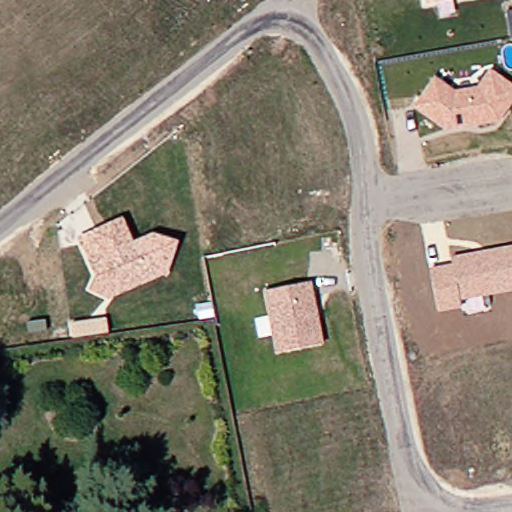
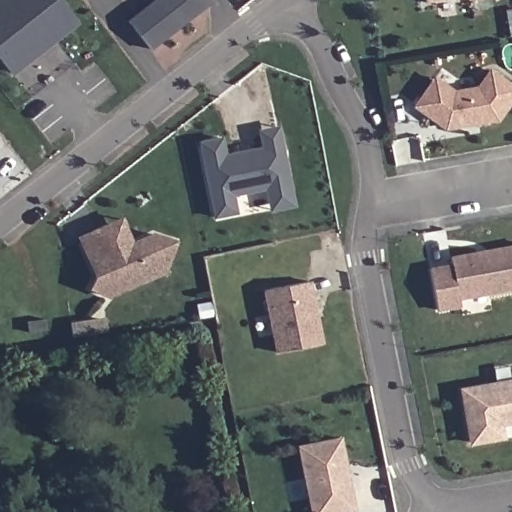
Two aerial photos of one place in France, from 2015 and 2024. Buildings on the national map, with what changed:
new [(13,72),(0,56),(0,2),(3,0),(57,0),(75,23),(54,40),(28,61),(13,72)]
new [(157,0),(207,0),(209,3),(150,50),(128,22),(157,0)]
unchanged [(426,0),(451,0),(427,5),(426,0)]
new [(512,12),(512,31),(509,12),(512,12)]
unchanged [(456,92),(478,87),(489,70),(512,85),(512,104),(499,122),(446,131),(413,107),(434,76),(456,92)]
new [(272,211),(268,190),(234,196),(238,214),(216,218),(201,143),(223,139),(227,156),(238,154),(238,159),(255,156),(254,151),(266,148),(262,132),(280,128),(286,156),(291,185),(296,207),(272,211)]
unchanged [(88,288),(95,277),(76,237),(123,217),(133,241),(151,232),(177,240),(166,275),(108,300),(88,288)]
unchanged [(429,268),(453,265),(450,256),(512,245),(512,291),(459,301),(460,308),(437,312),(429,268)]
unchanged [(275,352),(263,292),(311,282),(323,342),(275,352)]
new [(106,319),(108,332),(103,333),(73,338),(71,324),(100,320),(106,319)]
unchanged [(512,379),(512,424),(503,425),(504,439),(469,447),(459,388),(512,379)]
new [(348,466),(344,467),(346,475),(351,478),(358,510),(348,512),(315,512),(301,447),(343,439),(348,466)]

